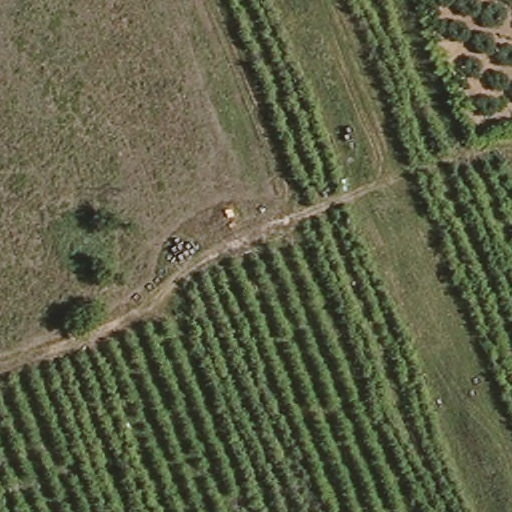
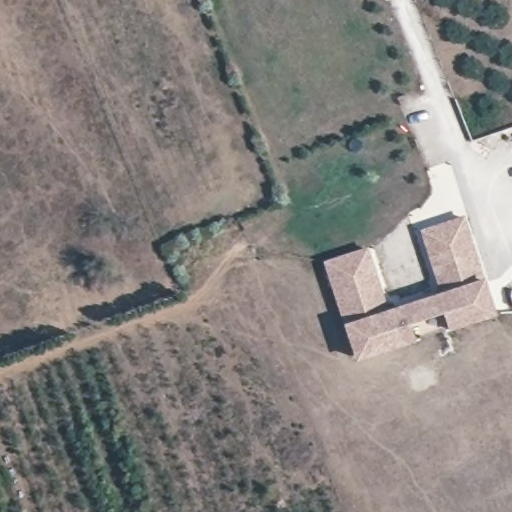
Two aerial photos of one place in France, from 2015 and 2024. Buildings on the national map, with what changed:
new [(386,310),(443,293),(421,226),(462,213),(495,312),(356,358),(325,260),(365,247),(386,310)]

